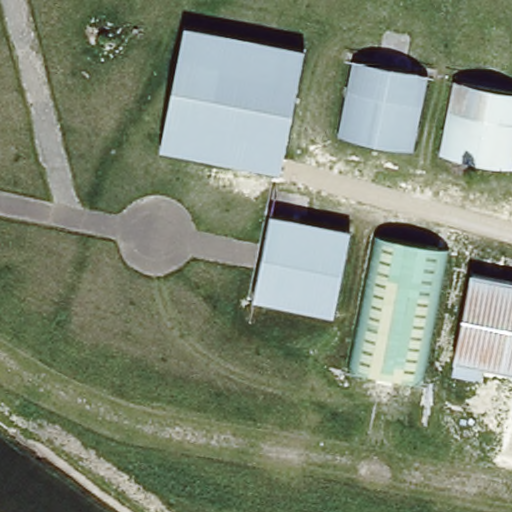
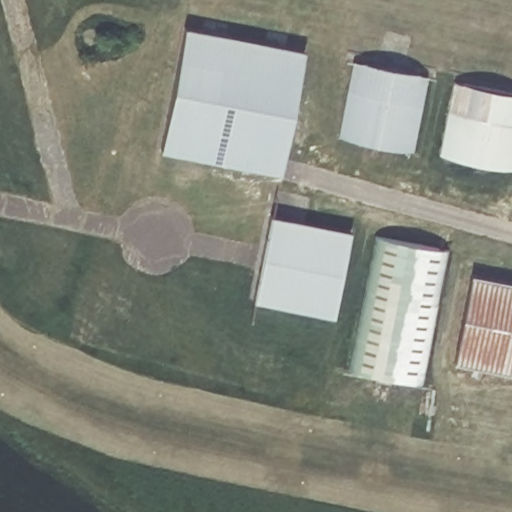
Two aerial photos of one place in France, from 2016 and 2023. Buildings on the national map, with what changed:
unchanged [(309,52),(285,174),(165,150),(190,29),(309,52)]
unchanged [(429,77),(415,149),(340,134),(355,62),(429,77)]
unchanged [(512,163),(511,168),(437,154),(451,82),(512,94),(512,163)]
unchanged [(352,232),(334,315),(255,298),(273,215),(352,232)]
unchanged [(380,236),(446,249),(420,382),(355,370),(380,236)]
unchanged [(482,381),(452,375),(455,360),(471,273),(512,281),(512,373),(485,367),(482,381)]

